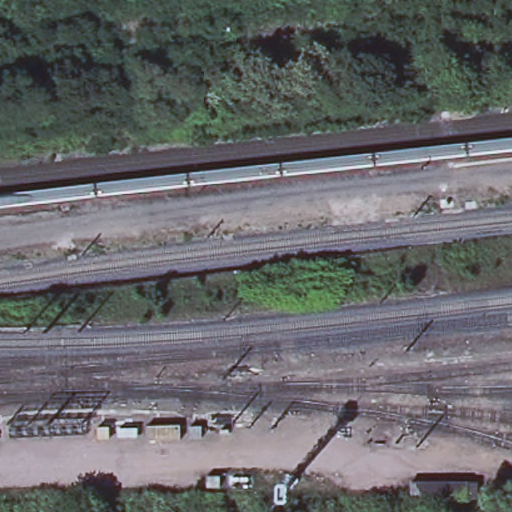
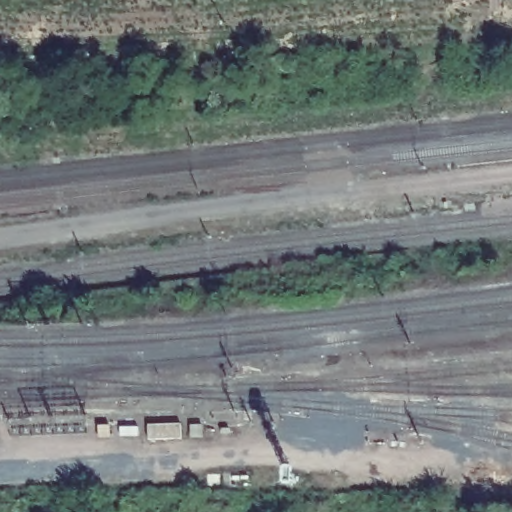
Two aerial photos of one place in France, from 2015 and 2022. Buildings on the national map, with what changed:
unchanged [(460,480),(461,501),(413,503),(411,480),(460,480)]

